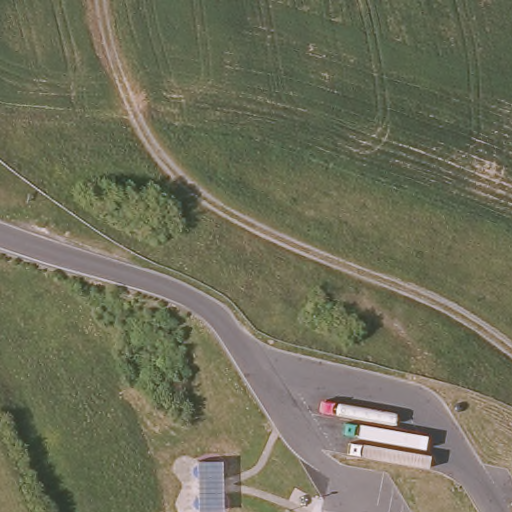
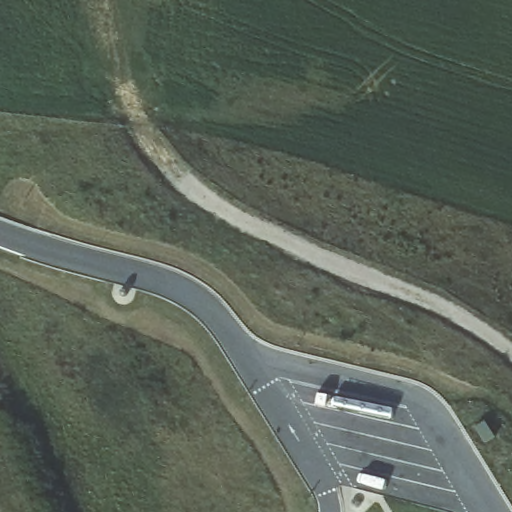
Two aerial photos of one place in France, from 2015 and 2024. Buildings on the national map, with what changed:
demolished [(222,464),(222,512),(196,512),(196,466),(222,464)]

